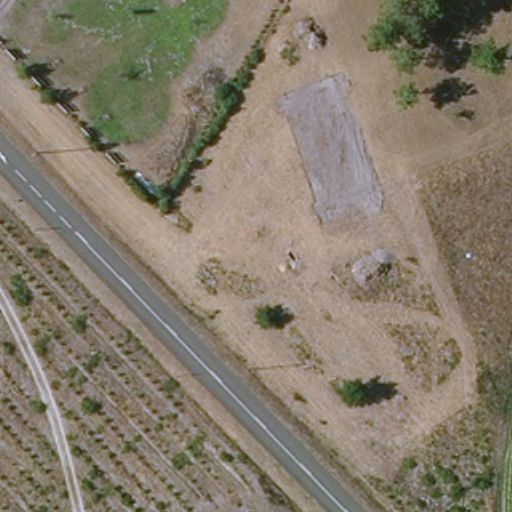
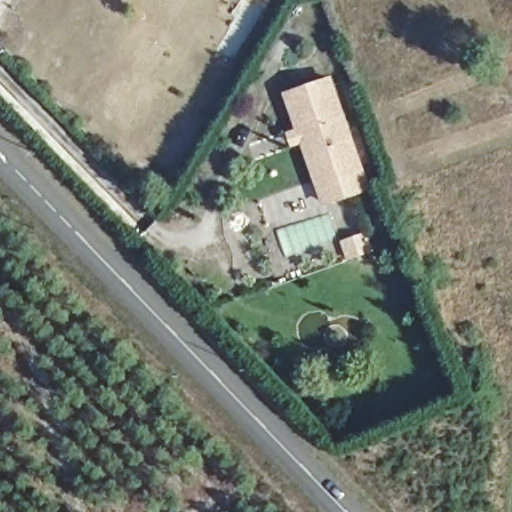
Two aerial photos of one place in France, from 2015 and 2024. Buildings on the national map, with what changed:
new [(375,198),(332,212),(310,149),(300,152),(297,143),(306,140),(294,104),(337,89),(375,198)]

